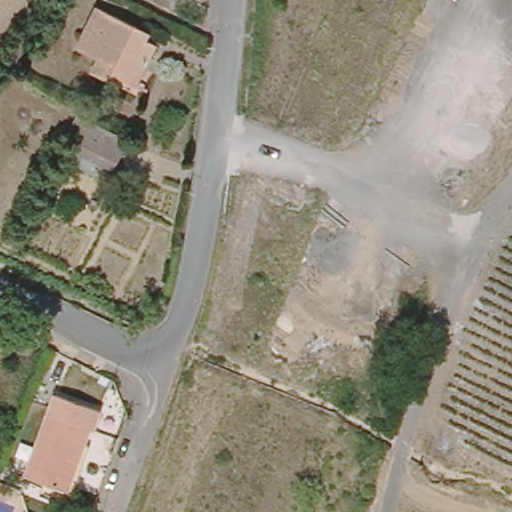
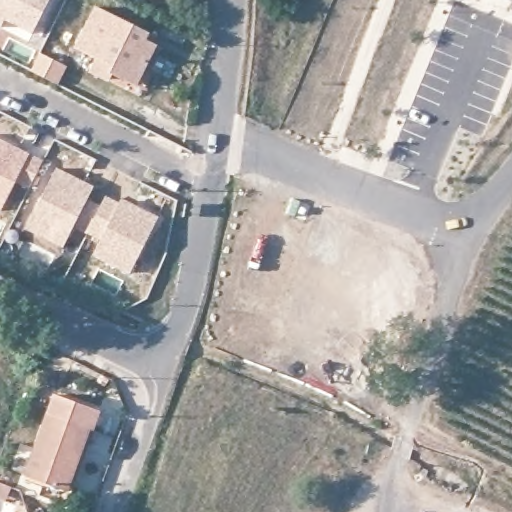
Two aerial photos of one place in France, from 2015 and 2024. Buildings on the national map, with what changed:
new [(32,34),(5,21),(1,27),(0,27),(0,0),(49,0),(32,34)]
unchanged [(77,50),(95,10),(116,20),(140,33),(138,38),(155,47),(152,54),(137,87),(112,76),(114,68),(83,53),(77,50)]
new [(39,51),(67,65),(58,84),(30,70),(39,51)]
demolished [(114,173),(76,154),(89,126),(127,145),(114,173)]
new [(30,188),(16,182),(0,212),(0,138),(44,159),(30,188)]
new [(55,165),(95,186),(90,198),(74,228),(63,249),(22,228),(55,165)]
new [(90,198),(100,204),(106,193),(120,200),(122,196),(160,216),(130,274),(92,254),(98,240),(74,228),(90,198)]
unchanged [(35,493),(37,485),(22,479),(52,395),(98,411),(92,432),(87,431),(62,503),(35,493)]

